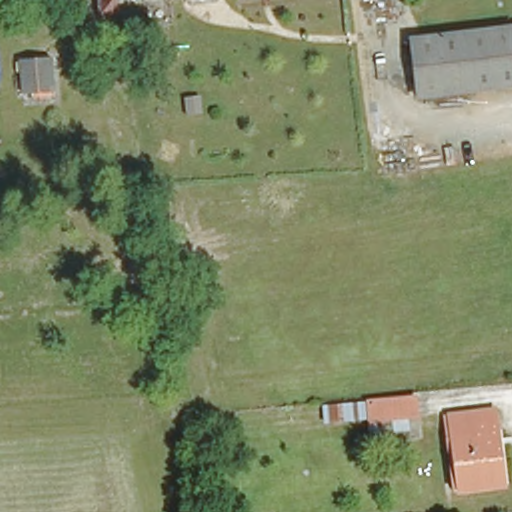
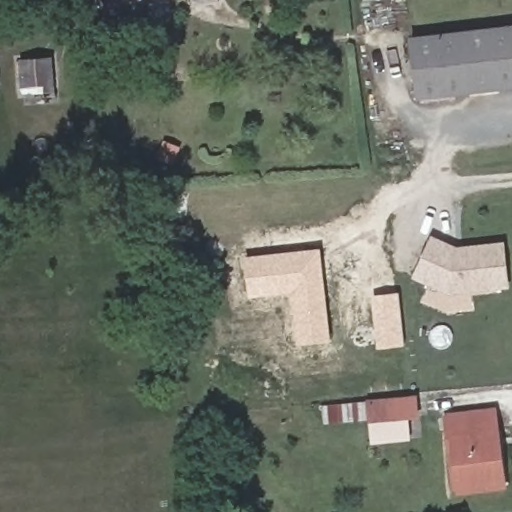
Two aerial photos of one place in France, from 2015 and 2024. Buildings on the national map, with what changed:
unchanged [(407,32),(512,21),(512,80),(414,91),(407,32)]
unchanged [(23,94),(19,60),(53,57),(56,93),(23,94)]
new [(457,247),(504,241),(509,288),(448,294),(412,278),(430,235),(457,247)]
new [(330,341),(297,347),(290,293),(249,298),(245,257),(320,248),(330,341)]
new [(404,346),(378,349),(372,295),(399,292),(404,346)]
unchanged [(416,433),(366,440),(364,419),(319,422),(317,398),(414,387),(416,433)]
unchanged [(489,403),(498,480),(497,480),(454,485),(448,414),(447,408),(489,403)]

